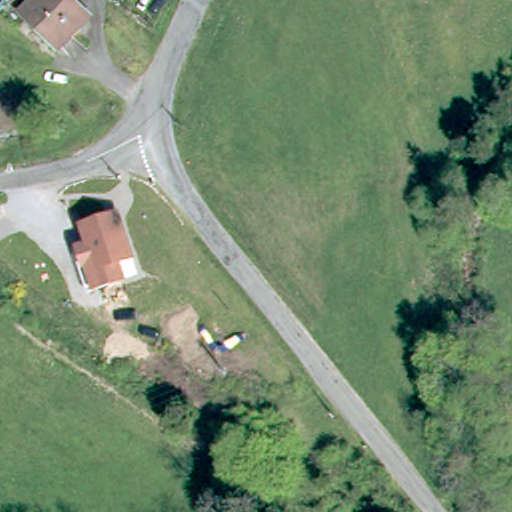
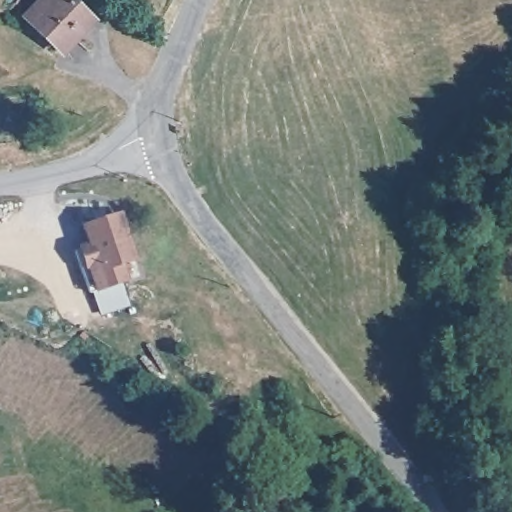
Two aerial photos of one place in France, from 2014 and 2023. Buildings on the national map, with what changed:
unchanged [(24,16),(38,0),(69,0),(89,18),(61,50),(24,16)]
unchanged [(123,264),(129,281),(92,292),(86,270),(83,271),(75,246),(86,243),(81,225),(122,212),(137,260),(123,264)]

